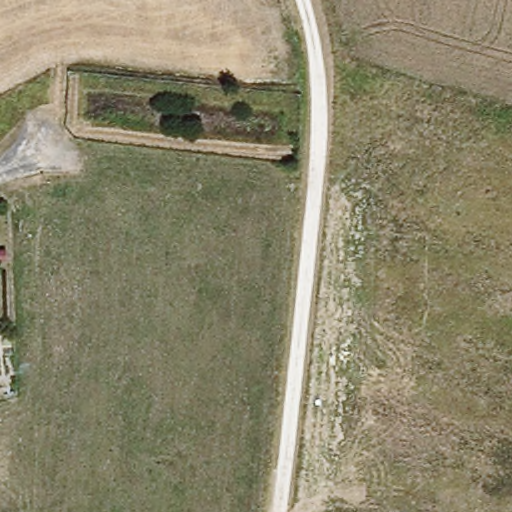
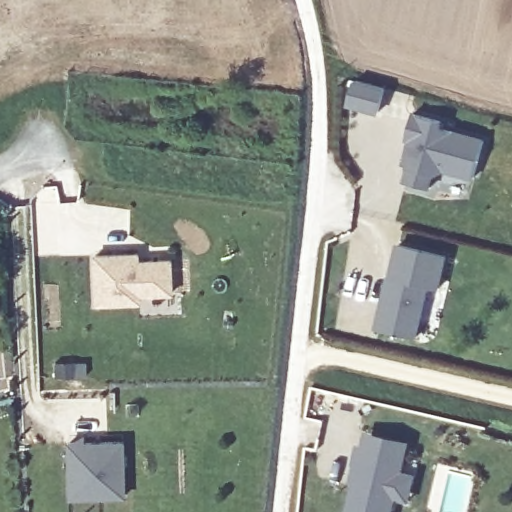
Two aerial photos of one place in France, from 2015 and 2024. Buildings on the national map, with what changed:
new [(445,120),(444,129),(485,139),(475,179),(445,172),(435,178),(432,190),(404,183),(409,166),(399,163),(413,112),(445,120)]
unchanged [(449,255),(440,289),(431,288),(418,340),(374,328),(397,241),(449,255)]
new [(141,251),(141,258),(173,258),(173,294),(143,295),(143,304),(94,305),(92,252),(141,251)]
new [(405,470),(416,473),(410,502),(398,500),(395,512),(344,512),(351,484),(348,483),(357,444),(363,446),(367,430),(412,441),(405,470)]
new [(71,440),(126,440),(126,495),(71,495),(71,440)]

